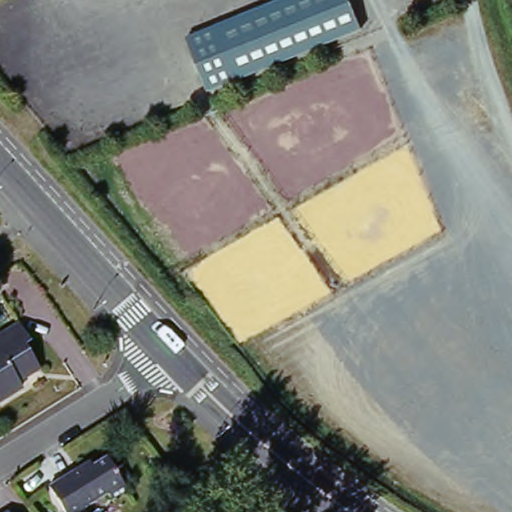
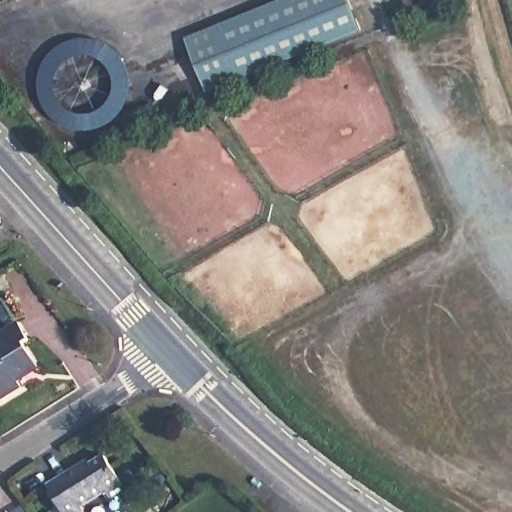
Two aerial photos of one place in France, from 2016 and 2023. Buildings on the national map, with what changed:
unchanged [(284,0),(351,0),(361,29),(206,91),(186,39),(284,0)]
new [(129,93),(126,102),(122,110),(116,118),(109,124),(100,129),(91,131),(82,132),(73,131),(64,129),(55,124),(48,118),(42,110),(37,102),(35,93),(34,84),(35,75),(37,66),(42,58),(48,50),(55,44),(64,39),(73,37),(82,36),(91,37),(100,39),(109,44),(116,50),(122,58),(126,66),(129,75),(130,84),(129,93)]
unchanged [(29,342),(23,344),(37,369),(15,382),(20,388),(0,400),(0,335),(18,324),(29,342)]
unchanged [(89,461),(92,465),(105,458),(127,489),(111,499),(106,492),(81,507),(84,512),(64,512),(47,488),(89,461)]

